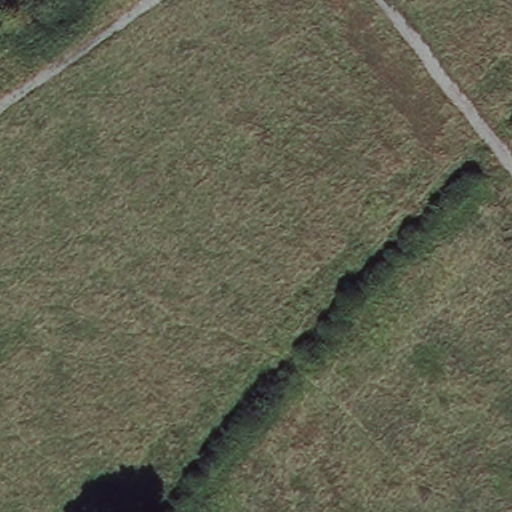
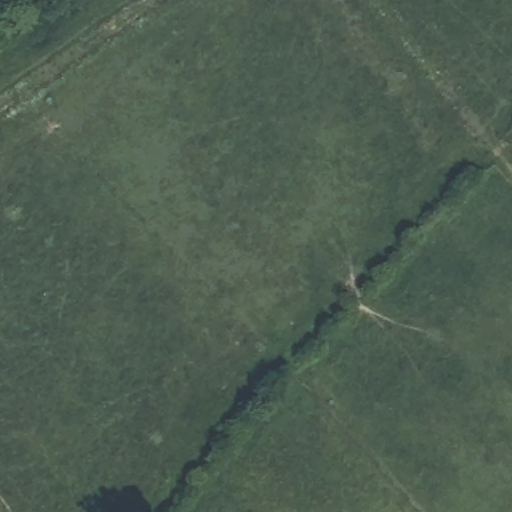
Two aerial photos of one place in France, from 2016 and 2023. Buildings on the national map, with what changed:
[]

